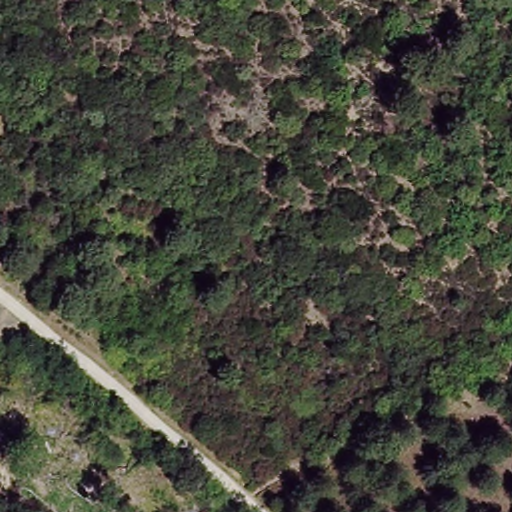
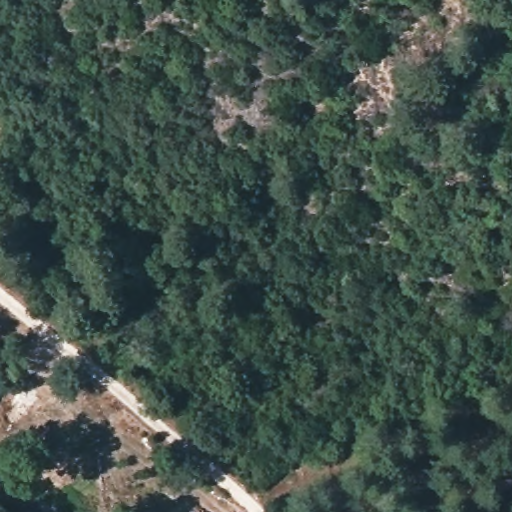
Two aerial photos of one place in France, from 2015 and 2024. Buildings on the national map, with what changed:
unchanged [(208,505),(203,512),(198,512),(192,505),(198,498),(208,505)]

